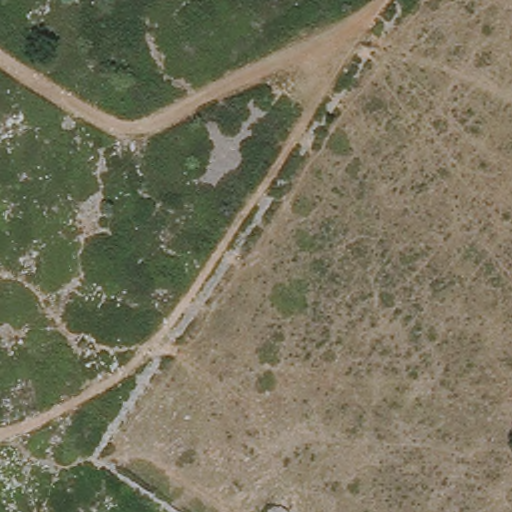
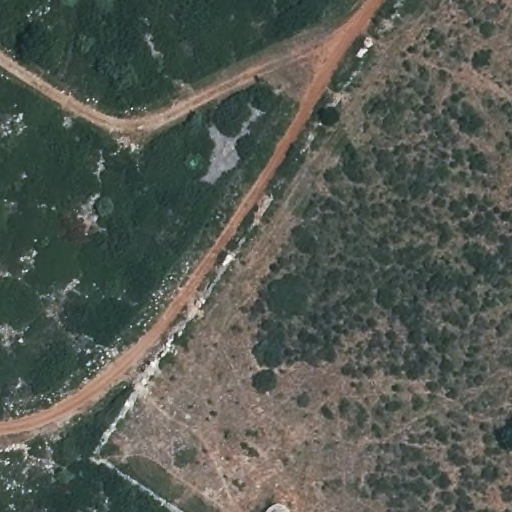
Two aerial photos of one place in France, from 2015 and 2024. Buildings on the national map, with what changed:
unchanged [(295,512),(271,512),(273,506),(295,511),(295,512)]

